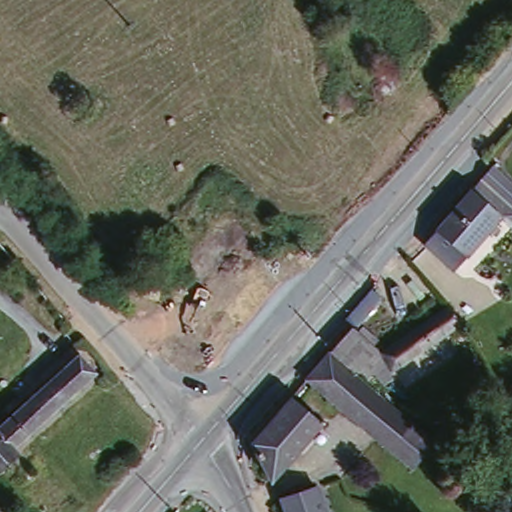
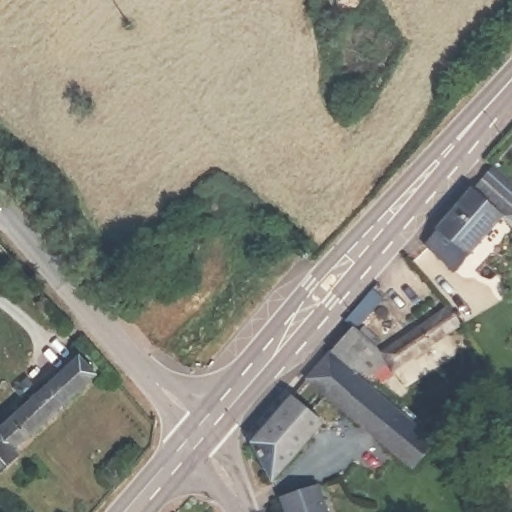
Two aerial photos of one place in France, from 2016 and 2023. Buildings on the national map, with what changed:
unchanged [(418,241),(484,163),(508,183),(498,195),(512,207),(512,219),(508,224),(490,213),(445,266),(418,241)]
unchanged [(490,213),(508,224),(460,280),(445,266),(490,213)]
unchanged [(463,316),(392,359),(382,345),(432,311),(449,298),(463,316)]
unchanged [(329,341),(352,318),(369,334),(347,355),(329,341)]
unchanged [(408,465),(303,373),(324,346),(348,366),(366,383),(374,374),(388,388),(382,397),(424,434),(429,441),(408,465)]
unchanged [(18,462),(0,480),(0,427),(59,374),(74,361),(91,383),(76,397),(13,456),(18,462)]
unchanged [(245,437),(287,391),(317,418),(268,470),(245,437)]
unchanged [(281,494),(319,484),(327,512),(285,512),(281,494)]

